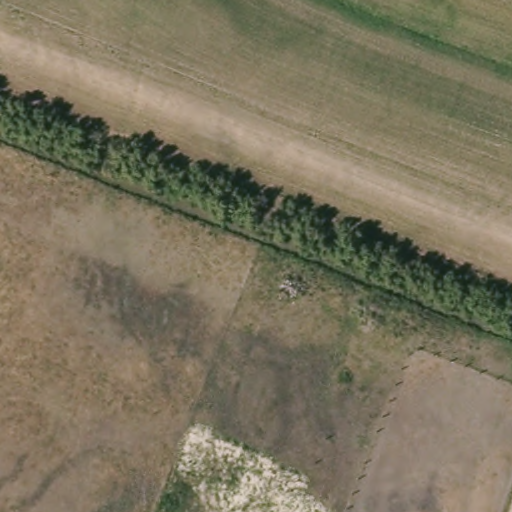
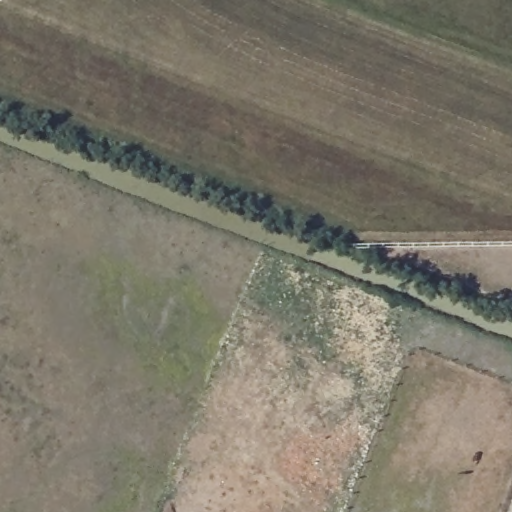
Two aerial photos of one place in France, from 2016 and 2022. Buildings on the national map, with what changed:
[]

